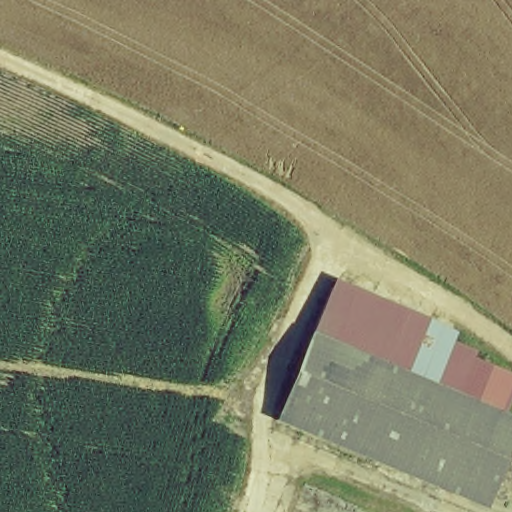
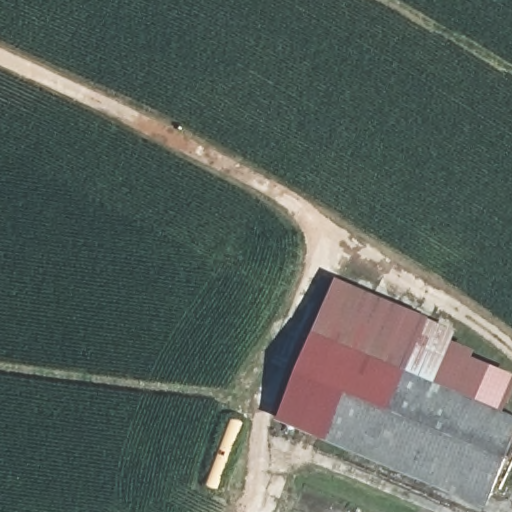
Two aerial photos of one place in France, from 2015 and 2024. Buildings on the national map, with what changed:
unchanged [(346,277),(467,329),(461,342),(445,380),(509,408),(512,409),(512,465),(493,508),(286,418),(346,277)]
unchanged [(475,355),(512,373),(512,400),(509,408),(445,380),(461,342),(477,349),(475,355)]

